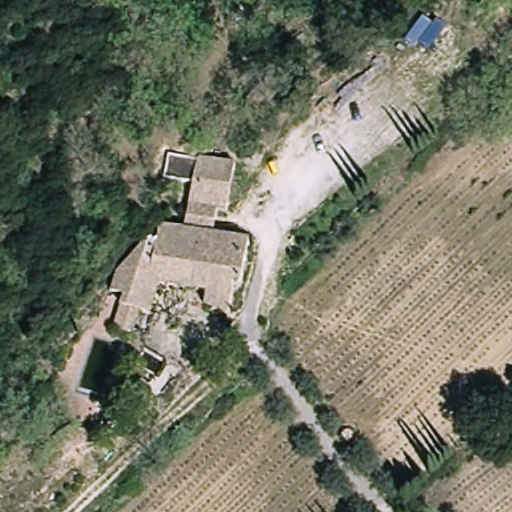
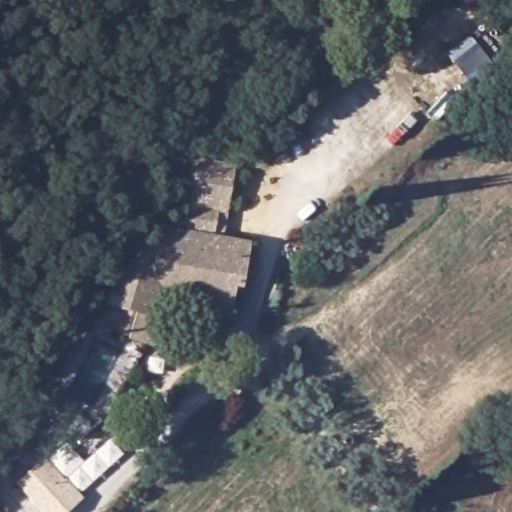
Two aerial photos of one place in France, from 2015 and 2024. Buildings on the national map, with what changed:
unchanged [(130,305),(122,282),(149,251),(163,232),(188,237),(196,189),(193,189),(167,185),(169,161),(183,163),(200,166),(200,164),(220,167),(236,170),(229,216),(227,216),(219,215),(215,241),(248,246),(252,247),(251,251),(245,290),(238,289),(233,321),(209,311),(212,298),(163,291),(154,322),(143,319),(137,342),(120,338),(130,305)]
unchanged [(97,450),(80,461),(67,441),(85,430),(97,450)]
new [(48,458),(65,443),(83,460),(65,476),(84,498),(69,512),(41,512),(6,474),(36,447),(48,458)]

